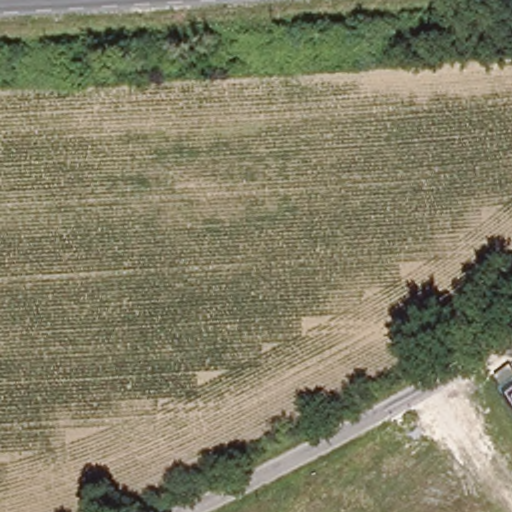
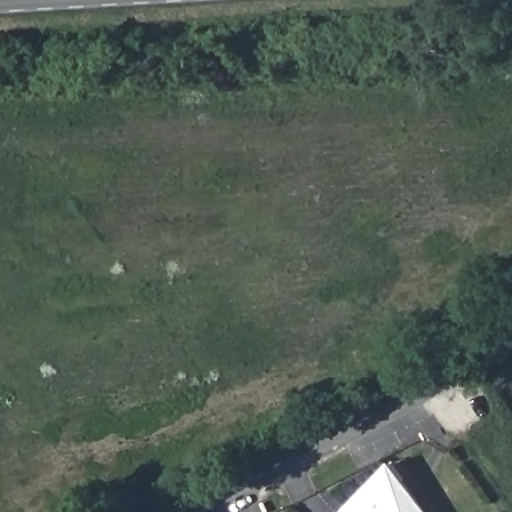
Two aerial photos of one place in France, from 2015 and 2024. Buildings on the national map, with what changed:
new [(428,512),(345,512),(393,465),(428,512)]

